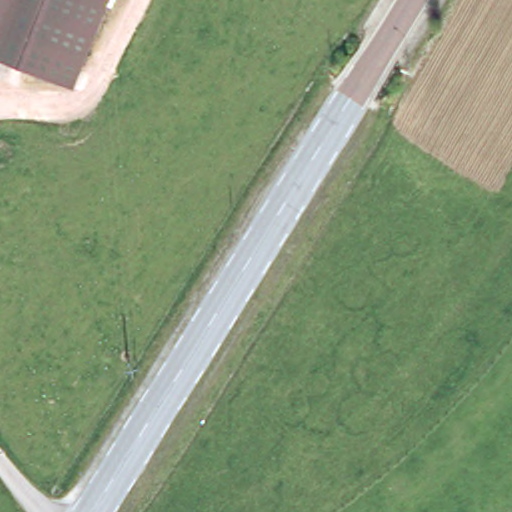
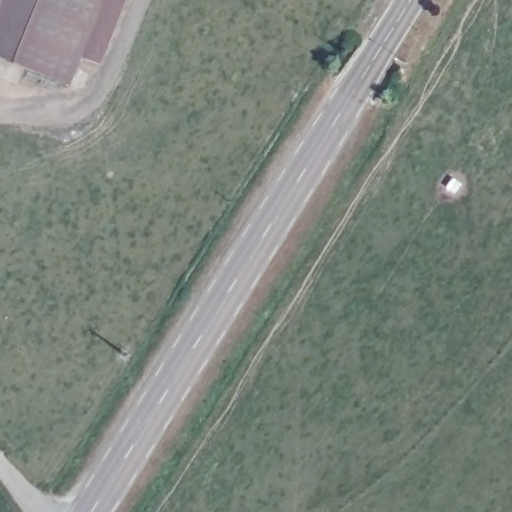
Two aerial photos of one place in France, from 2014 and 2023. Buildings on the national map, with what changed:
unchanged [(108,0),(87,52),(94,55),(90,64),(83,61),(74,84),(0,52),(0,0),(108,0)]

